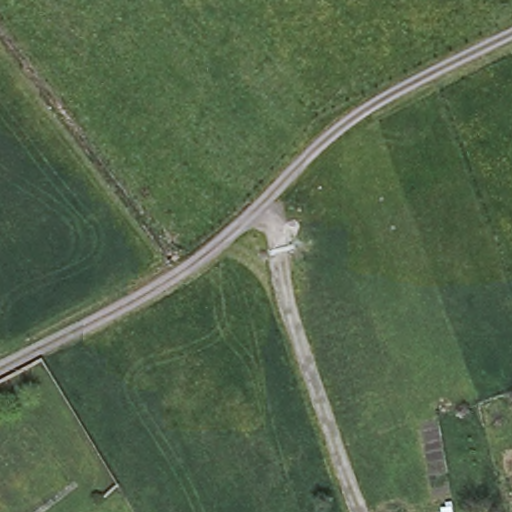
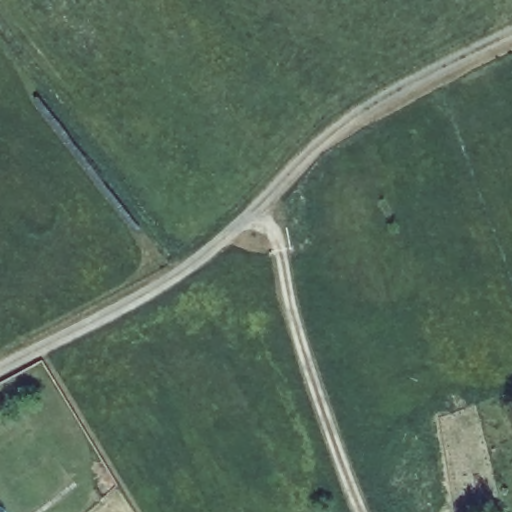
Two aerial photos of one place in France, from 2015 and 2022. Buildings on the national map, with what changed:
[]

